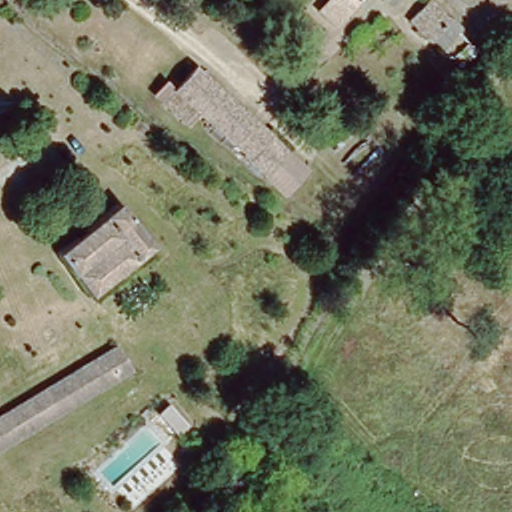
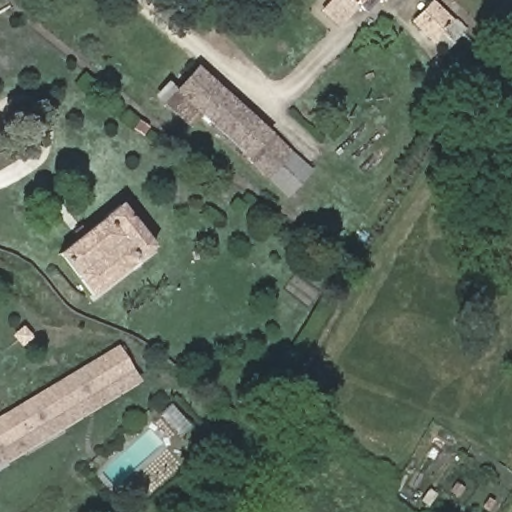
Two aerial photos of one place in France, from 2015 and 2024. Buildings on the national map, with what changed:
unchanged [(339,32),(323,20),(324,18),(339,0),(378,0),(364,16),(358,11),(354,16),(339,32)]
unchanged [(497,52),(485,66),(468,51),(454,37),(446,46),(418,19),(433,2),(451,19),(475,42),(481,37),(497,52)]
unchanged [(166,104),(198,67),(217,83),(186,121),(166,104)]
unchanged [(198,109),(219,86),(294,157),(276,179),(198,109)]
unchanged [(152,132),(144,140),(136,131),(143,124),(152,132)]
unchanged [(59,250),(121,202),(155,248),(93,296),(59,250)]
unchanged [(119,347),(136,372),(35,430),(19,407),(119,347)]
unchanged [(0,418),(19,407),(35,430),(0,450),(0,418)]

